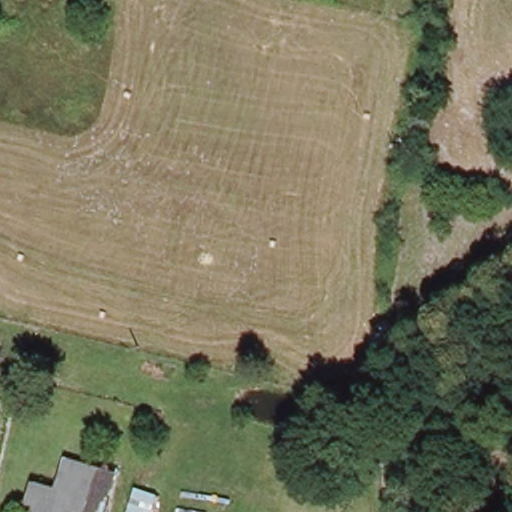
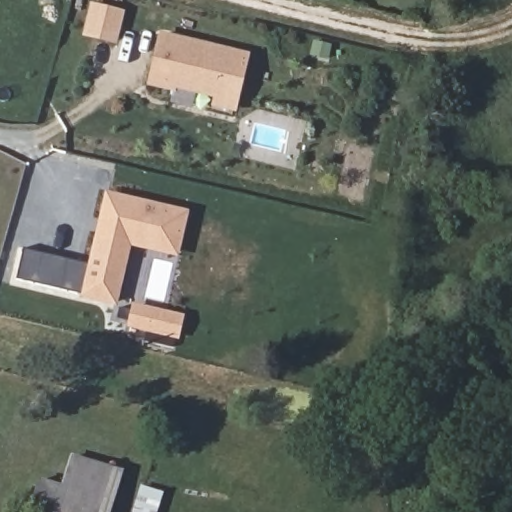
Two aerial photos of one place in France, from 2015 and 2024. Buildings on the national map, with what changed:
new [(121,14),(115,42),(86,35),(94,7),(121,14)]
new [(234,108),(215,104),(217,95),(175,85),(174,89),(150,84),(155,67),(157,55),(162,35),(246,56),(234,108)]
new [(81,298),(76,292),(17,278),(24,249),(88,264),(105,193),(189,210),(179,257),(131,245),(116,307),(81,298)]
new [(126,328),(132,302),(185,314),(179,340),(126,328)]
unchanged [(124,469),(110,512),(31,512),(26,511),(37,476),(61,483),(69,453),(124,469)]
unchanged [(137,484),(163,490),(157,512),(130,512),(137,484)]

